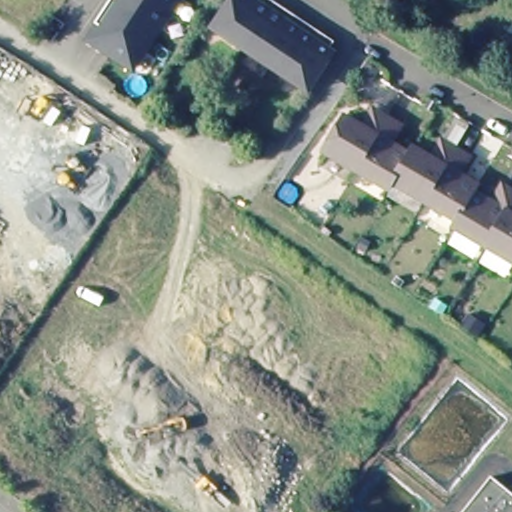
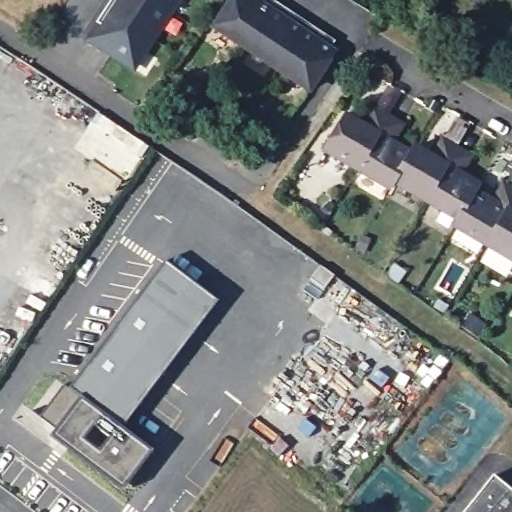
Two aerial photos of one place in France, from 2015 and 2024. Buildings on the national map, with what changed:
unchanged [(94,36),(104,21),(101,20),(113,0),(178,0),(139,64),(94,36)]
unchanged [(214,29),(232,0),(266,0),(275,5),(291,15),(321,35),(333,43),(330,50),(333,52),(309,90),(214,29)]
unchanged [(506,186),(512,190),(512,260),(456,228),(460,221),(396,185),(392,192),(327,155),(347,119),(366,130),(376,112),(403,128),(394,145),(412,156),(416,150),(434,160),(444,142),(472,159),(462,175),(481,186),(477,192),(496,203),(506,186)]
new [(123,490),(89,464),(73,452),(50,435),(55,427),(40,415),(64,382),(69,386),(166,260),(219,300),(122,426),(147,446),(154,450),(123,490)]
new [(321,264),(336,274),(325,287),(311,277),(321,264)]
unchanged [(493,478),(512,493),(512,512),(467,512),(493,478)]

